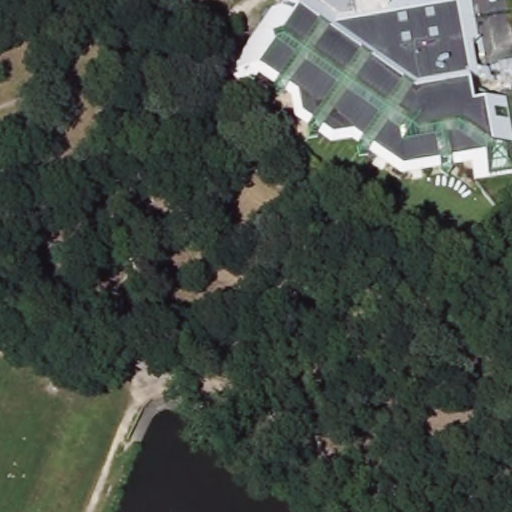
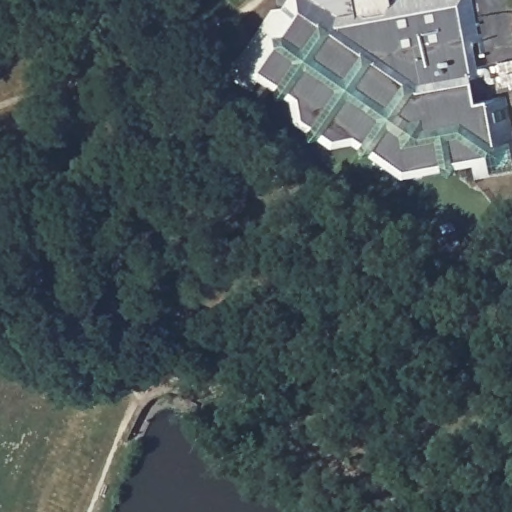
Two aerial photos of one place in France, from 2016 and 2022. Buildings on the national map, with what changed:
unchanged [(263,0),(327,0),(338,9),(356,7),(367,14),(368,20),(383,19),(383,13),(391,2),(404,0),(470,0),(475,37),(480,36),(483,56),(479,56),(477,44),(466,45),(470,70),(485,68),(486,79),(467,82),(469,105),(497,102),(506,174),(464,179),(462,163),(442,165),(443,169),(437,177),(430,172),(429,166),(390,171),(361,149),(358,152),(348,153),(347,143),(349,139),(340,133),(320,136),(310,127),(305,131),(295,132),(294,121),(296,118),(285,110),(284,89),(275,82),(272,86),(261,87),(260,76),(262,72),(248,62),(239,73),(220,59),(263,0)]

